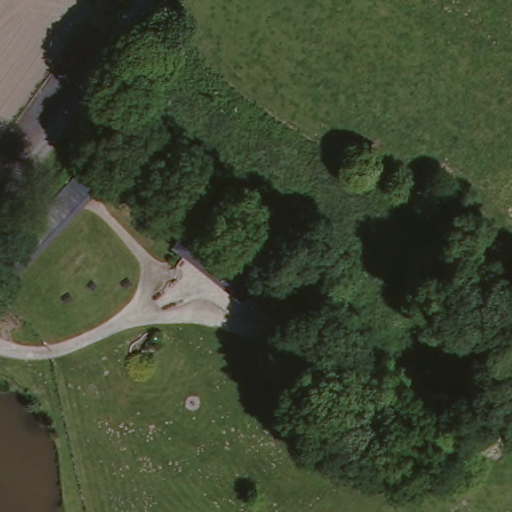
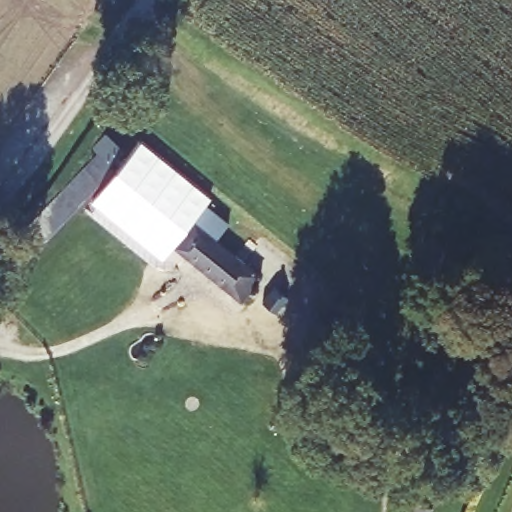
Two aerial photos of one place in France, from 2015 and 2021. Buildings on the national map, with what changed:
new [(175,248),(164,259),(93,202),(141,142),(213,200),(209,205),(175,248)]
unchanged [(0,291),(0,290),(0,258),(101,145),(118,160),(0,291)]
new [(254,289),(258,292),(253,298),(249,295),(242,303),(175,248),(209,205),(229,225),(218,240),(263,279),(254,289)]
demolished [(270,280),(263,288),(268,292),(261,299),(257,295),(249,304),(184,247),(205,223),(270,280)]
unchanged [(294,303),(285,313),(271,299),(279,290),(294,303)]
new [(432,512),(413,512),(414,506),(432,507),(432,512)]

